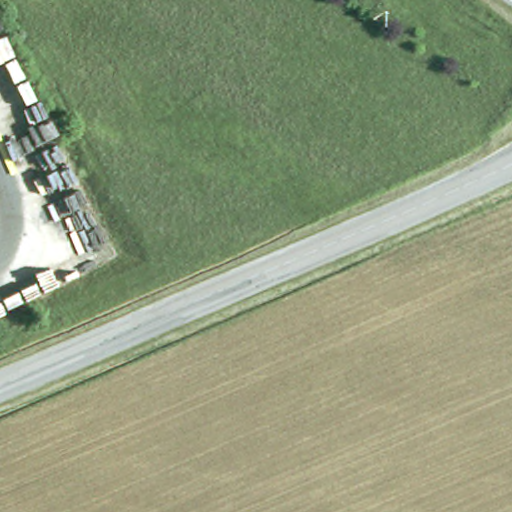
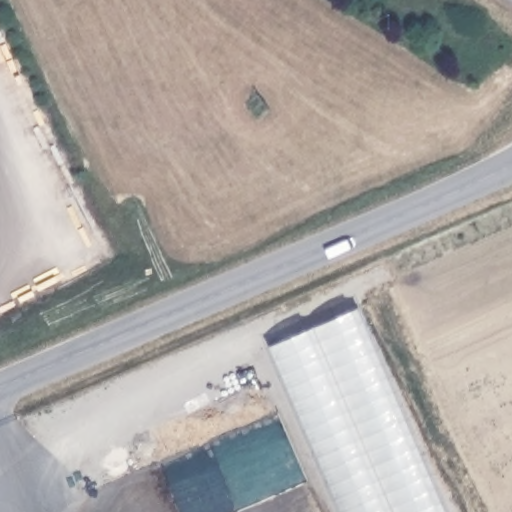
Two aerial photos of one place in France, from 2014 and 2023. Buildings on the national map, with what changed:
new [(361,315),(444,512),(340,512),(272,352),(361,315)]

